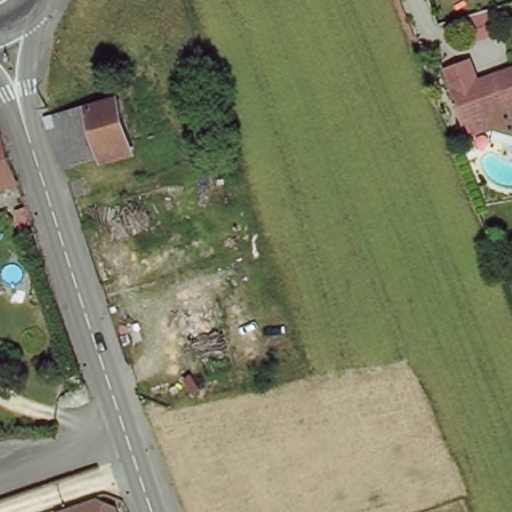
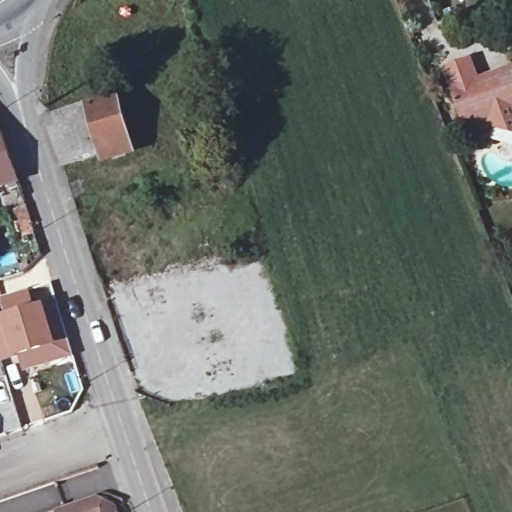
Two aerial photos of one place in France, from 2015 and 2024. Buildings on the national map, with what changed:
unchanged [(467,120),(465,121),(453,86),(459,84),(455,70),(469,65),(473,79),(512,65),(512,106),(485,114),(484,115),(488,126),(470,132),(467,120)]
unchanged [(45,119),(109,102),(120,99),(132,146),(61,167),(45,119)]
unchanged [(0,189),(0,126),(17,176),(19,184),(0,189)]
unchanged [(33,226),(22,229),(21,224),(17,213),(28,210),(33,226)]
new [(22,372),(18,359),(3,363),(0,355),(0,317),(6,315),(1,298),(32,290),(37,305),(48,301),(52,311),(59,308),(70,340),(74,357),(22,372)]
new [(2,365),(0,365),(0,359),(2,365)]
new [(32,383),(46,418),(31,423),(20,387),(32,383)]
unchanged [(121,512),(68,512),(101,501),(120,511),(121,512)]

